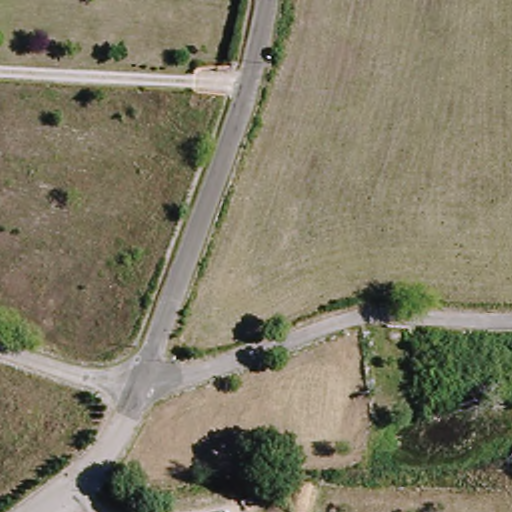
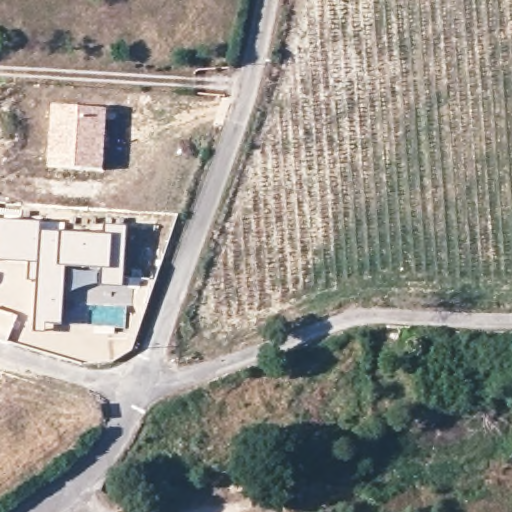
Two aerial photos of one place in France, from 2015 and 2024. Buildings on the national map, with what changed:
new [(51,103),(108,107),(104,170),(46,167),(51,103)]
new [(29,264),(38,264),(42,219),(64,221),(64,229),(103,232),(103,226),(127,227),(124,286),(101,287),(102,270),(67,268),(65,292),(62,325),(55,325),(55,331),(33,331),(36,282),(28,281),(29,264)]
new [(38,264),(29,264),(0,262),(0,221),(41,222),(38,264)]

